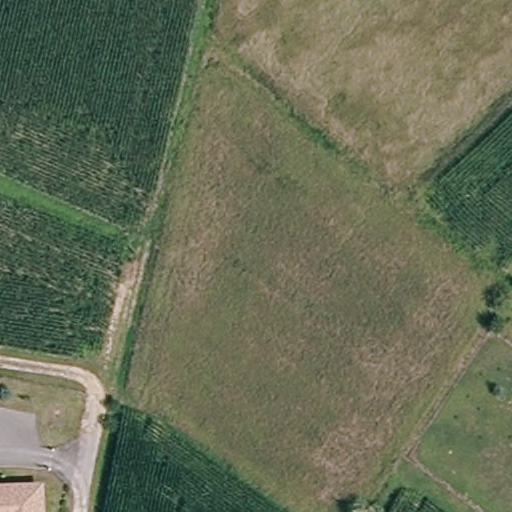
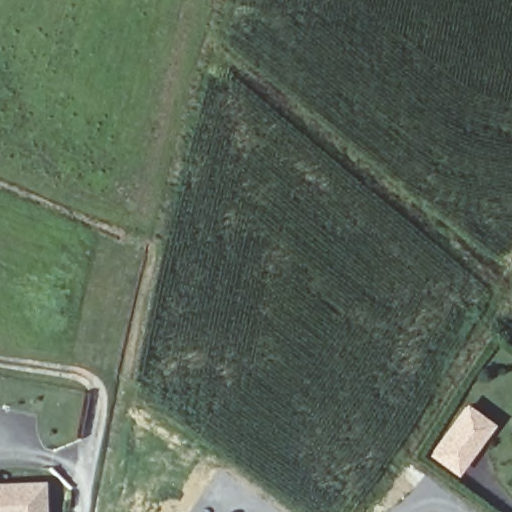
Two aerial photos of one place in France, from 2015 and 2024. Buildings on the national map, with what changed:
new [(455,470),(432,452),(467,403),(495,423),(455,470)]
unchanged [(48,512),(0,512),(0,486),(46,482),(48,512)]

